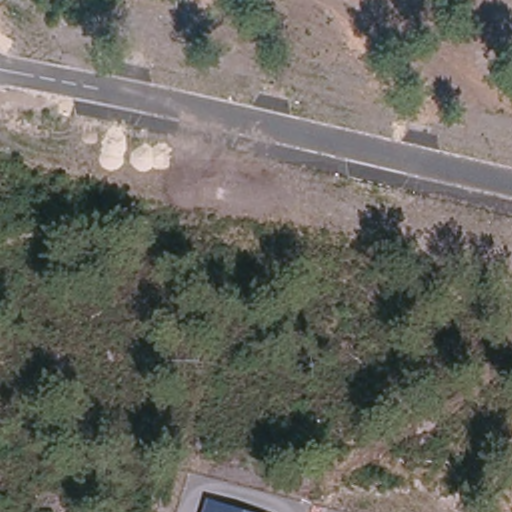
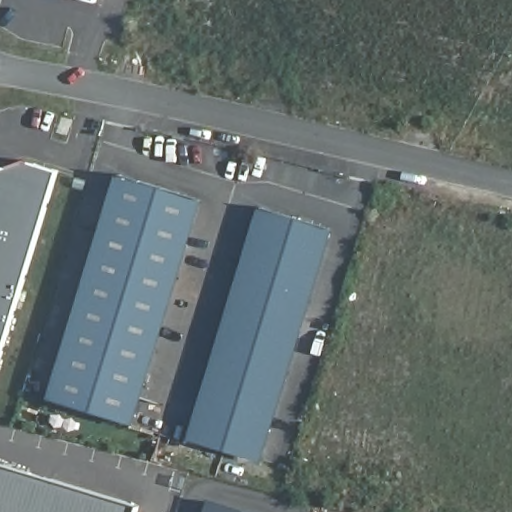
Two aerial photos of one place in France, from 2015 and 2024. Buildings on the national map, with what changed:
new [(92,0),(96,0),(95,1),(92,0)]
new [(0,362),(0,169),(28,160),(59,171),(0,362)]
new [(117,173),(202,199),(133,425),(49,397),(117,173)]
new [(188,438),(258,206),(332,229),(262,463),(188,438)]
new [(138,505),(136,512),(0,512),(0,464),(138,505)]
unchanged [(213,500),(251,512),(209,512),(213,500)]

